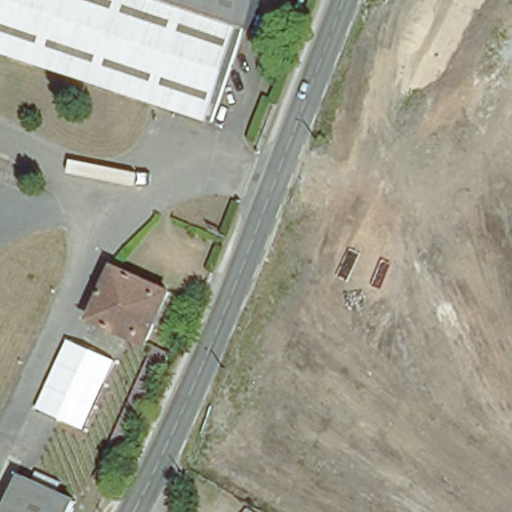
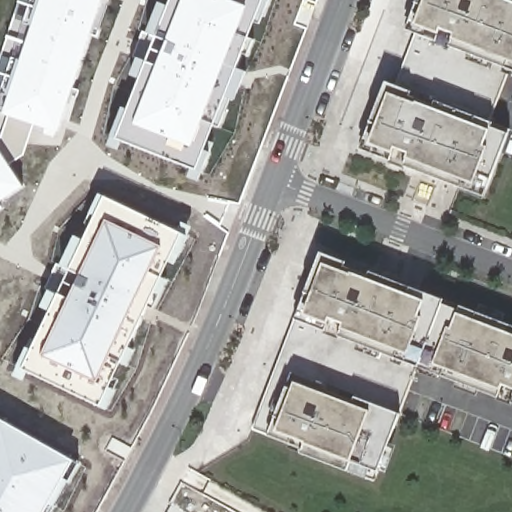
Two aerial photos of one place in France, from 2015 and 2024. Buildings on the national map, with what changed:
new [(35,125),(9,116),(4,114),(0,113),(0,59),(19,0),(102,0),(59,132),(35,125)]
new [(117,139),(171,0),(263,0),(197,170),(117,139)]
demolished [(261,0),(252,29),(164,0),(261,0)]
new [(416,36),(407,32),(419,0),(512,0),(512,74),(508,72),(416,36)]
new [(490,125),(397,88),(416,36),(508,72),(490,125)]
new [(483,199),(361,151),(386,84),(397,88),(490,125),(510,132),(483,199)]
new [(0,149),(0,138),(1,137),(9,116),(35,125),(24,155),(10,165),(0,149)]
new [(0,149),(10,165),(24,185),(0,201),(0,149)]
new [(77,237),(85,241),(105,198),(182,235),(101,406),(24,370),(51,313),(41,309),(77,237)]
new [(296,320),(322,252),(444,299),(418,367),(296,320)]
demolished [(115,266),(170,292),(146,345),(91,320),(115,266)]
new [(444,299),(512,325),(512,404),(418,367),(444,299)]
new [(255,427),(296,320),(418,367),(401,415),(293,373),(271,434),(255,427)]
demolished [(111,486),(95,480),(155,347),(169,355),(111,486)]
new [(271,434),(293,373),(401,415),(376,482),(301,452),(303,446),(271,434)]
new [(0,418),(75,460),(46,512),(0,512),(0,418)]
demolished [(73,512),(3,512),(20,476),(77,503),(73,512)]

